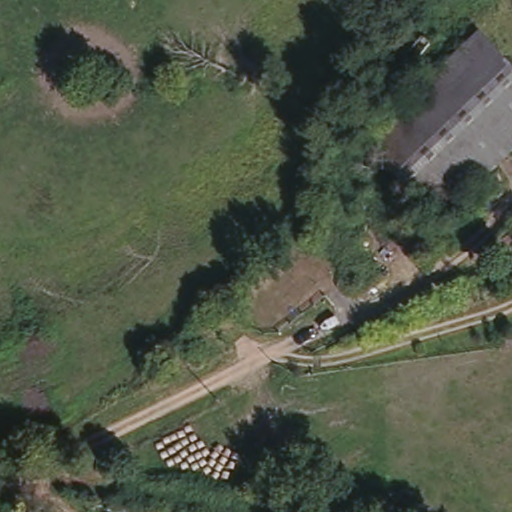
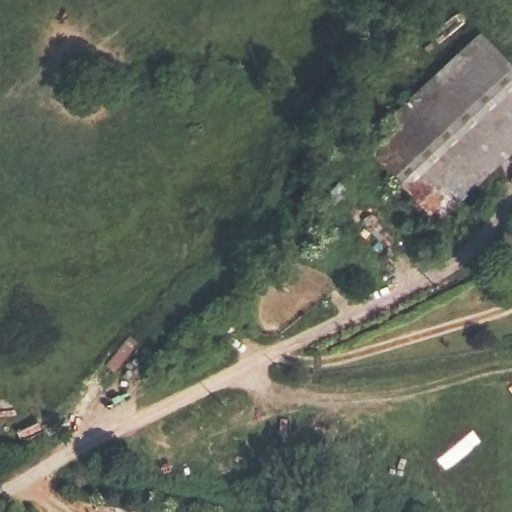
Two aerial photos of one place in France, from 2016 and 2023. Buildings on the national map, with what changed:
unchanged [(512,73),(512,156),(436,227),(363,150),(480,39),(512,73)]

